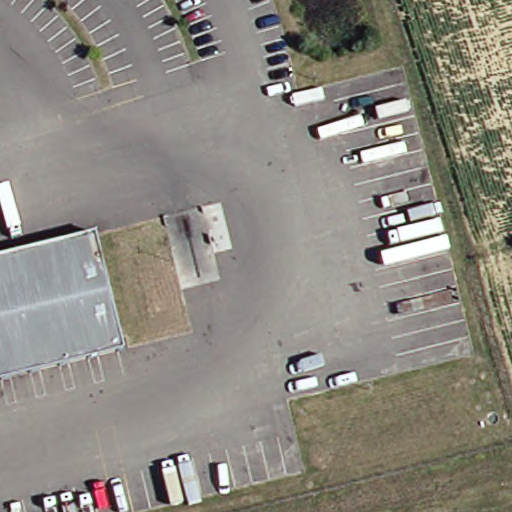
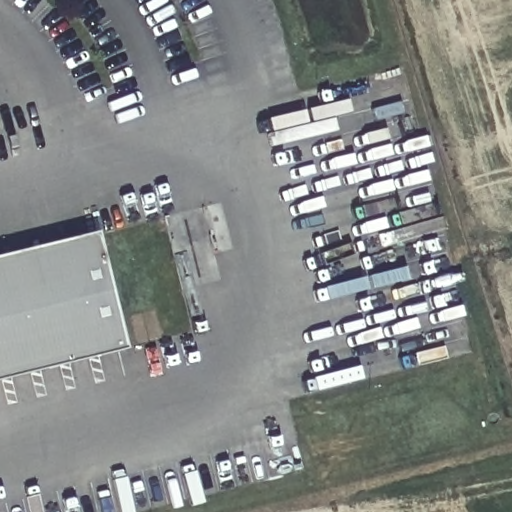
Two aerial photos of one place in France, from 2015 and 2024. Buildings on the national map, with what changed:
unchanged [(96,233),(125,350),(0,382),(0,257),(96,233)]

